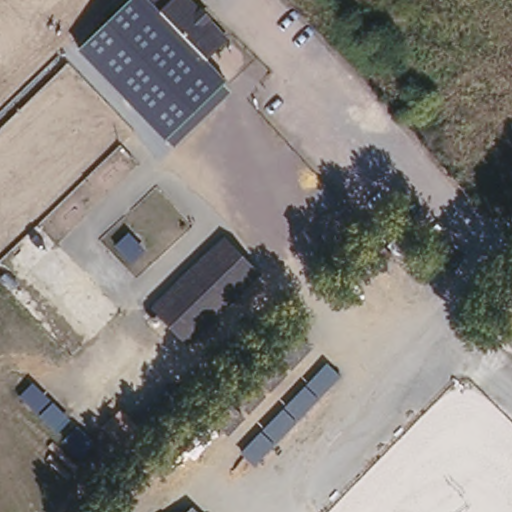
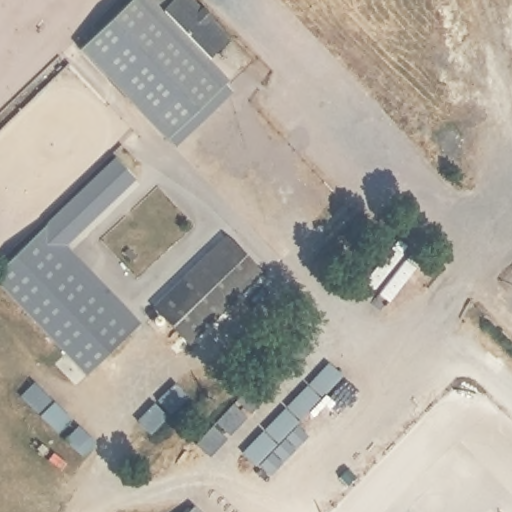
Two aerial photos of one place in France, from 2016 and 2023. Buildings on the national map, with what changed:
unchanged [(74,46),(118,0),(146,0),(201,52),(222,72),(211,84),(164,133),(74,46)]
unchanged [(201,52),(146,0),(191,0),(223,32),(201,52)]
new [(141,176),(71,247),(141,321),(85,374),(0,285),(0,267),(115,150),(141,176)]
unchanged [(188,341),(148,302),(223,231),(261,268),(188,341)]
demolished [(28,232),(110,313),(74,350),(0,278),(0,263),(28,232)]
unchanged [(327,362),(343,376),(255,467),(241,453),(327,362)]
unchanged [(84,457),(16,397),(32,382),(98,444),(84,457)]
unchanged [(190,506),(197,512),(185,512),(190,506)]

